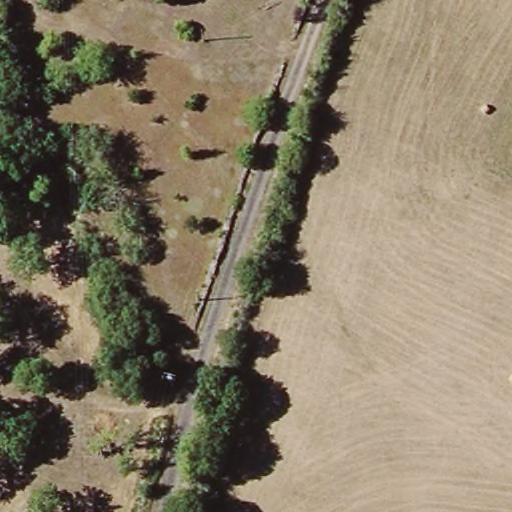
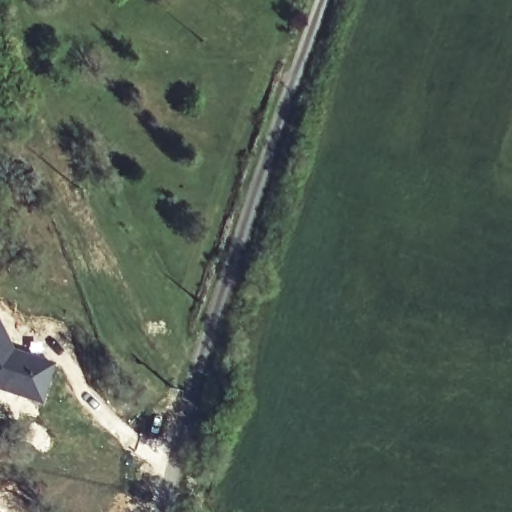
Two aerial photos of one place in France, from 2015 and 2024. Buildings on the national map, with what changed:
new [(55,363),(41,402),(0,388),(0,320),(12,346),(55,363)]
new [(1,512),(0,512),(0,511),(1,511),(1,512)]

